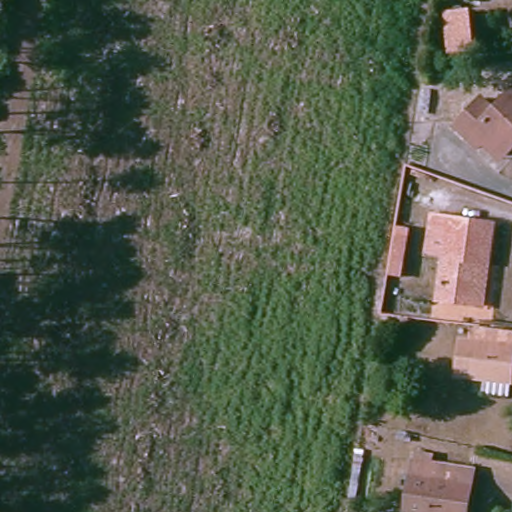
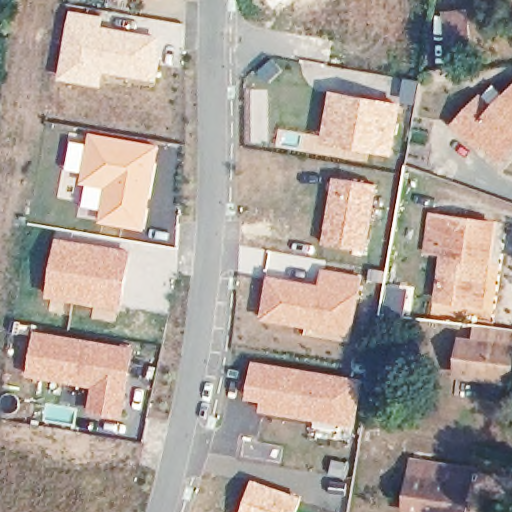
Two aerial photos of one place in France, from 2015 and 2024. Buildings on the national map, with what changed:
new [(69,9),(103,14),(101,26),(159,35),(154,81),(103,73),(100,86),(57,79),(69,9)]
new [(329,90),(402,102),(392,156),(321,141),(329,90)]
unchanged [(466,133),(456,123),(484,95),(497,108),(512,95),(512,151),(498,164),(466,133)]
new [(88,131),(158,144),(143,231),(97,222),(98,210),(80,207),(84,186),(79,185),(88,131)]
new [(330,177),(378,185),(366,252),(319,243),(330,177)]
unchanged [(435,303),(437,290),(442,253),(426,251),(427,217),(494,222),(489,265),(484,308),(435,303)]
new [(56,237),(124,247),(131,248),(121,305),(120,312),(46,298),(56,237)]
new [(131,248),(124,247),(125,239),(177,247),(168,313),(160,312),(161,299),(147,299),(146,309),(121,305),(131,248)]
new [(385,269),(383,283),(366,280),(368,267),(385,269)]
new [(267,275),(317,284),(320,268),(361,275),(350,341),(257,319),(267,275)]
new [(409,287),(404,320),(378,318),(383,283),(409,287)]
unchanged [(479,394),(480,375),(455,372),(458,341),(473,342),(474,327),(499,330),(512,331),(512,364),(510,379),(507,397),(479,394)]
new [(33,329),(134,346),(122,419),(84,412),(89,388),(26,377),(33,329)]
new [(251,359),(364,379),(355,428),(257,411),(259,402),(244,399),(251,359)]
unchanged [(404,510),(408,462),(451,468),(469,469),(467,483),(464,512),(421,512),(404,510)]
new [(251,479),(302,497),(297,512),(239,512),(251,479)]

